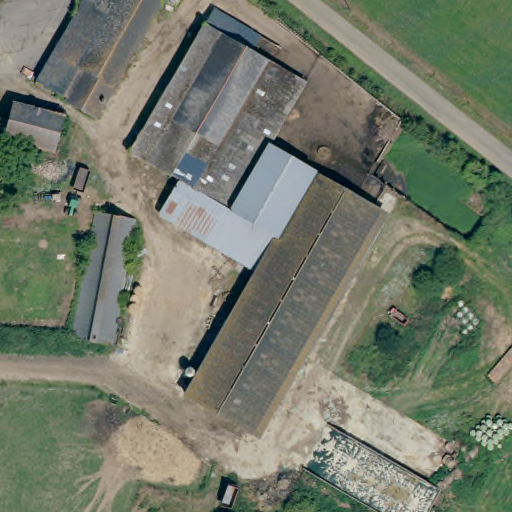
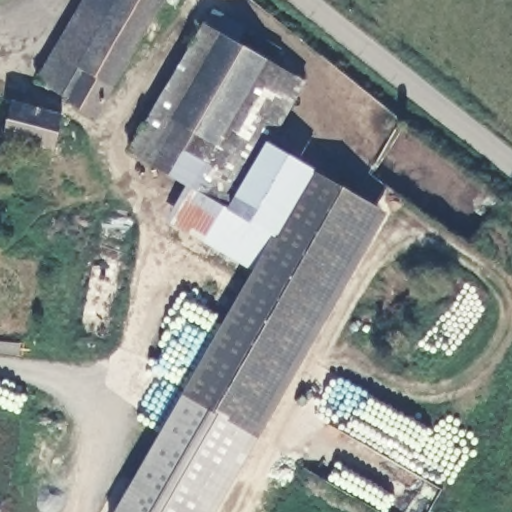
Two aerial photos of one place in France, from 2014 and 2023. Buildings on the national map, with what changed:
unchanged [(71,97),(72,94),(44,77),(89,0),(123,0),(124,1),(124,0),(162,0),(97,112),(71,97)]
unchanged [(218,163),(199,151),(181,182),(129,150),(217,8),(286,49),(273,69),(238,129),(218,163)]
unchanged [(273,69),(306,88),(271,148),(238,129),(273,69)]
unchanged [(15,100),(65,116),(55,148),(20,137),(5,133),(15,100)]
unchanged [(271,148),(313,175),(257,271),(162,215),(181,182),(199,151),(218,163),(238,129),(271,148)]
unchanged [(313,175),(373,211),(242,435),(180,398),(257,271),(313,175)]
unchanged [(102,209),(140,219),(112,341),(92,336),(74,331),(76,321),(102,209)]
new [(180,398),(242,435),(255,444),(216,512),(115,512),(180,398)]

